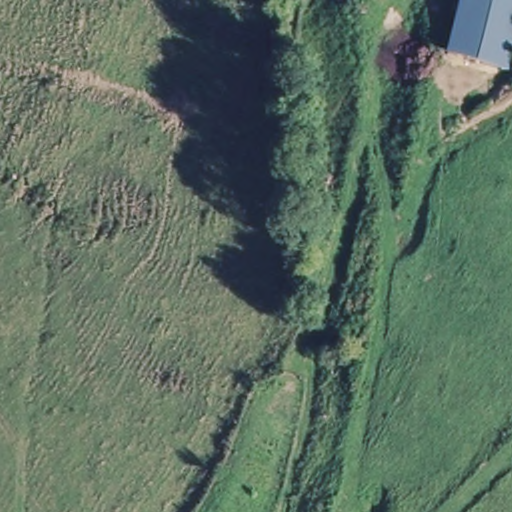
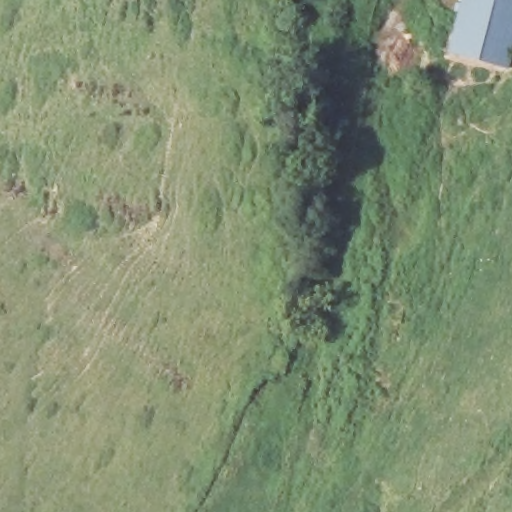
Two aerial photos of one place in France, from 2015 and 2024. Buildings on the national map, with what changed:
unchanged [(450,41),(464,0),(512,0),(512,43),(504,63),(450,41)]

